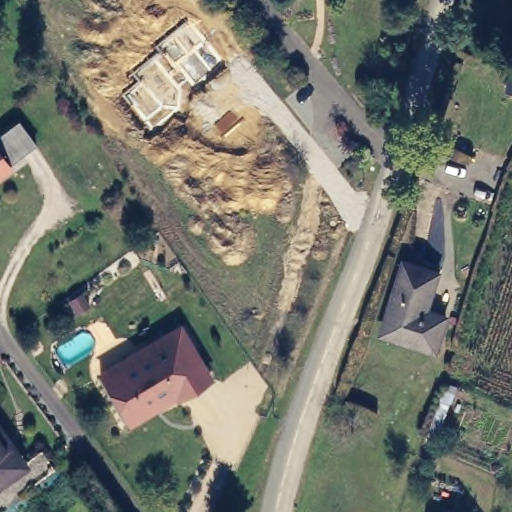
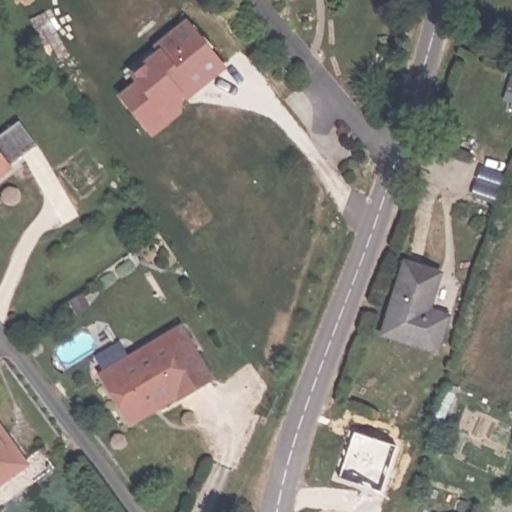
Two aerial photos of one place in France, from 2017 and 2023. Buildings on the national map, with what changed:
new [(119,95),(137,81),(130,72),(157,52),(152,46),(188,19),(227,68),(183,102),(180,114),(152,137),(119,95)]
new [(510,82),(512,82),(512,103),(505,102),(510,82)]
unchanged [(37,144),(10,165),(12,169),(0,177),(0,134),(19,119),(37,144)]
unchanged [(435,357),(389,341),(398,316),(390,313),(405,266),(440,277),(427,315),(447,323),(435,357)]
unchanged [(164,332),(180,323),(209,376),(192,385),(164,332)]
unchanged [(99,367),(164,332),(192,385),(175,394),(127,420),(122,409),(99,367)]
unchanged [(0,472),(0,441),(15,462),(0,472)]

